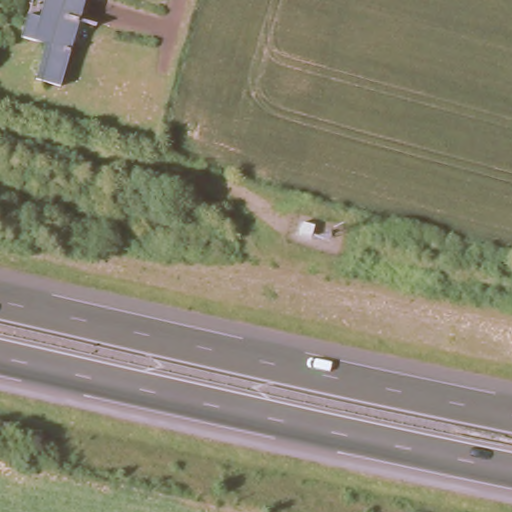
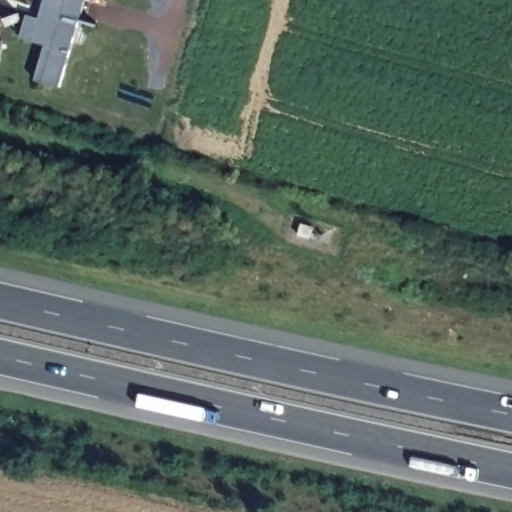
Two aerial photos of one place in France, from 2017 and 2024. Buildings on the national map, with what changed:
unchanged [(40,77),(49,44),(24,36),(31,16),(41,19),(46,0),(88,0),(64,85),(40,77)]

